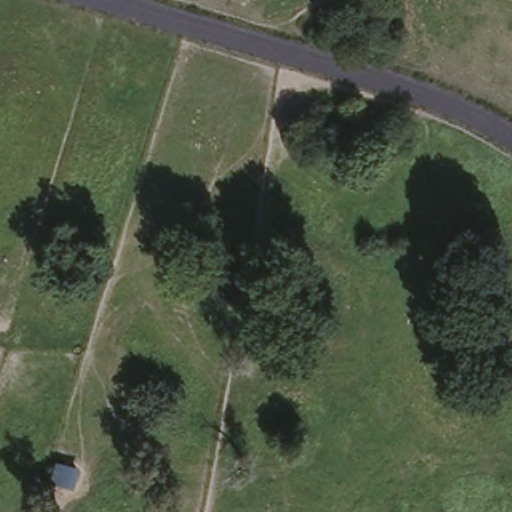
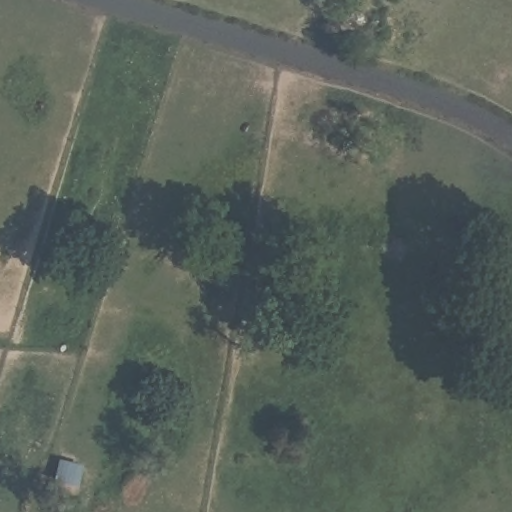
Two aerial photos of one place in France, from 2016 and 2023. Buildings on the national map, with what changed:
unchanged [(207,311),(190,308),(194,289),(193,266),(223,265),(238,264),(239,287),(223,288),(211,289),(207,311)]
unchanged [(81,461),(77,487),(53,484),(57,459),(81,461)]

